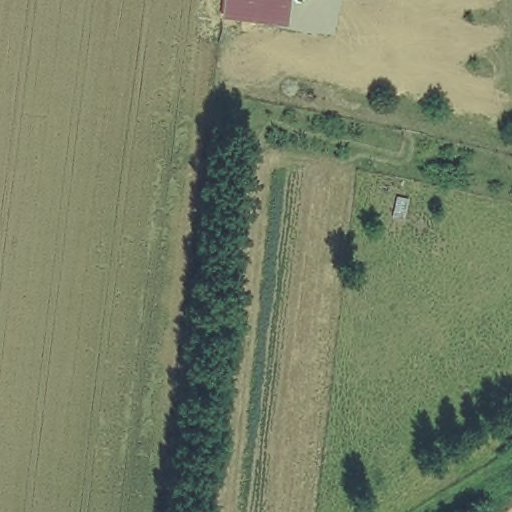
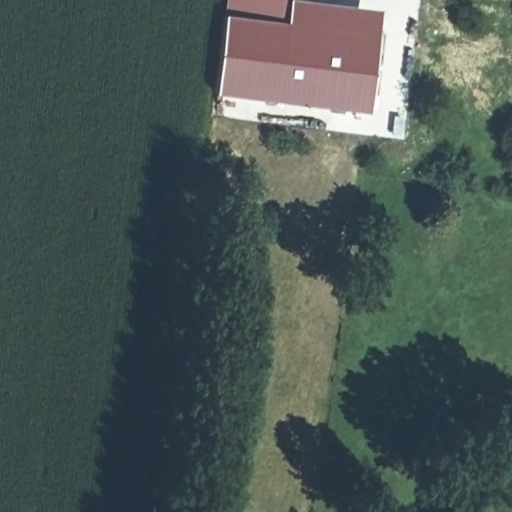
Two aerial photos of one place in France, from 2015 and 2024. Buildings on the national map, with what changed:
new [(365,109),(216,89),(223,19),(287,25),(289,0),(331,0),(377,5),(365,109)]
unchanged [(225,0),(289,0),(287,25),(223,19),(225,0)]

